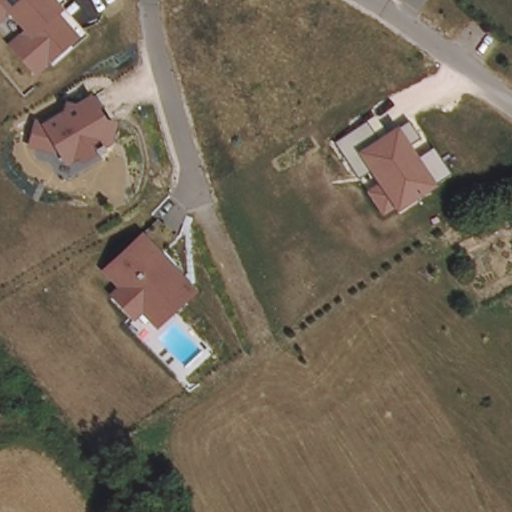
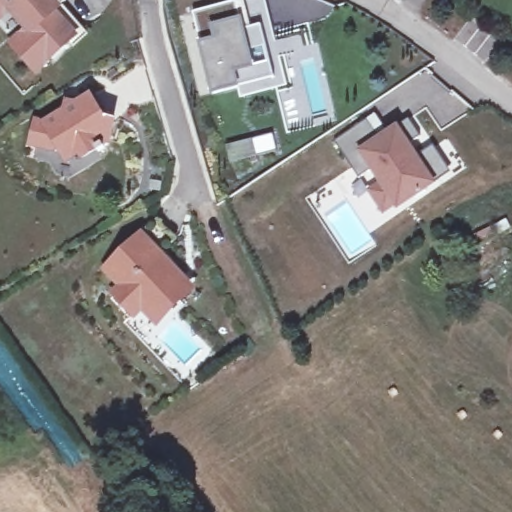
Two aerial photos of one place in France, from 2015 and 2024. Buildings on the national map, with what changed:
unchanged [(33,77),(8,46),(27,34),(13,17),(0,25),(0,0),(57,0),(85,35),(33,77)]
new [(251,27),(262,25),(275,77),(240,85),(240,88),(212,95),(198,44),(192,12),(245,0),(251,27)]
unchanged [(115,147),(65,170),(55,157),(27,146),(28,126),(93,93),(107,114),(118,120),(115,147)]
unchanged [(398,212),(395,209),(384,217),(367,192),(378,184),(370,171),(360,178),(336,144),(375,117),(387,135),(399,127),(408,121),(419,140),(410,145),(420,157),(432,148),(450,173),(398,212)]
unchanged [(159,328),(142,313),(135,320),(110,294),(118,286),(103,270),(144,234),(200,290),(159,328)]

